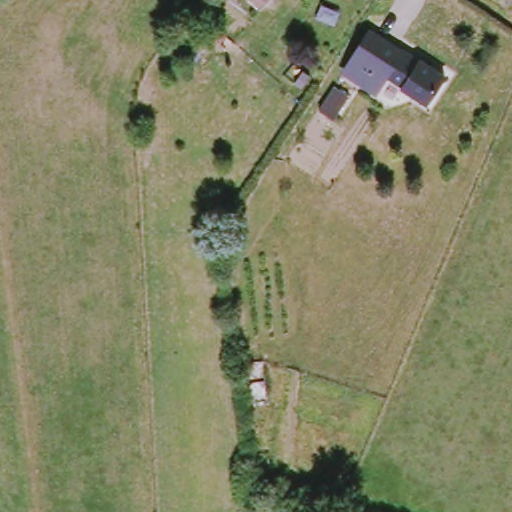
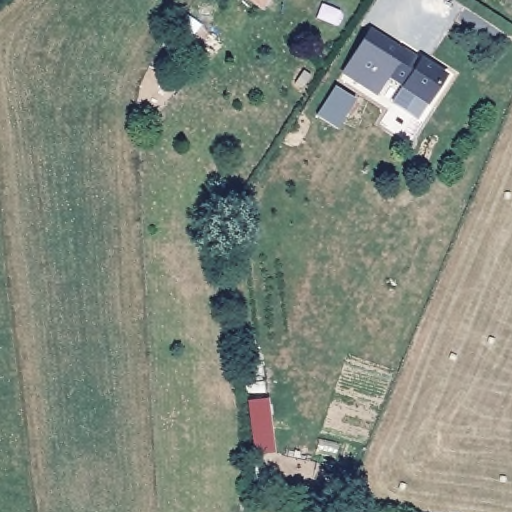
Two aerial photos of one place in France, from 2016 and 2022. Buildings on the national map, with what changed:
unchanged [(244,0),(264,0),(255,11),(244,0)]
unchanged [(422,56),(449,73),(431,102),(402,86),(390,77),(387,82),(380,93),(343,72),(351,60),(372,26),(422,56)]
new [(275,453),(254,455),(247,401),(267,399),(275,453)]

